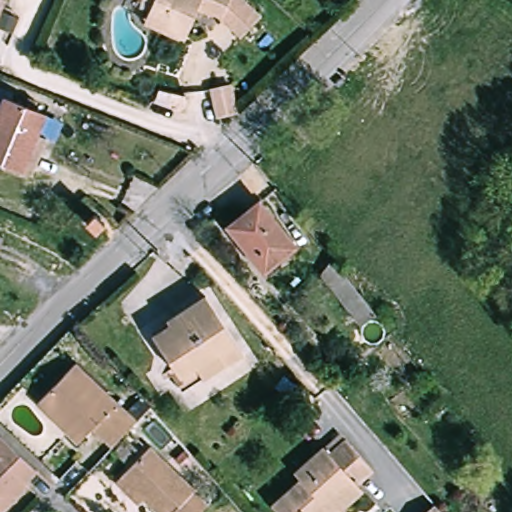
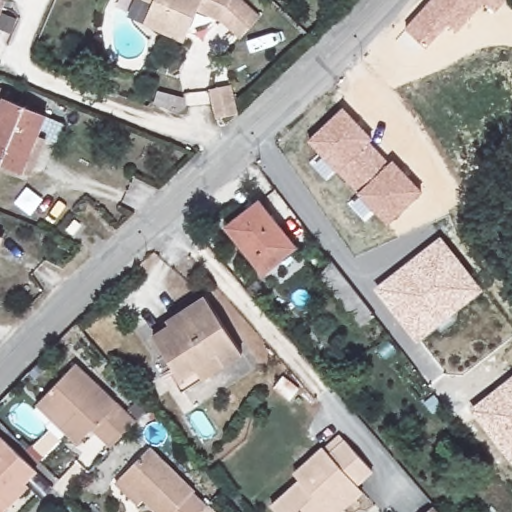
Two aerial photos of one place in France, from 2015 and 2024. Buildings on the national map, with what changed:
unchanged [(0,0),(3,0),(0,8),(0,0)]
unchanged [(220,21),(196,10),(182,41),(143,24),(153,3),(147,0),(240,0),(259,17),(239,38),(220,21)]
new [(483,1),(457,31),(448,23),(427,47),(406,29),(431,0),(505,0),(496,12),(483,1)]
new [(228,90),(234,117),(212,121),(207,94),(228,90)]
unchanged [(30,175),(21,172),(0,163),(0,104),(0,97),(2,98),(44,115),(36,135),(45,138),(30,175)]
new [(337,172),(307,141),(343,106),(373,138),(370,141),(390,163),(393,160),(422,192),(388,225),(358,194),(337,172)]
unchanged [(295,246),(263,272),(227,226),(258,201),(295,246)]
unchanged [(0,256),(0,234),(7,236),(0,256)]
new [(374,290),(440,236),(484,290),(417,343),(374,290)]
unchanged [(339,271),(374,316),(360,327),(317,272),(332,261),(339,271)]
unchanged [(173,370),(177,366),(152,327),(170,315),(167,311),(205,286),(241,343),(223,355),(181,382),(173,370)]
unchanged [(135,422),(123,434),(112,446),(92,428),(78,443),(37,403),(75,364),(135,422)]
new [(471,409),(512,376),(512,462),(471,409)]
unchanged [(333,512),(332,512),(327,505),(319,512),(279,512),(270,502),(299,476),(293,470),(322,443),(323,443),(338,429),(372,465),(355,479),(362,486),(333,512)]
unchanged [(0,507),(0,431),(35,466),(23,478),(17,472),(7,481),(17,490),(0,507)]
unchanged [(200,512),(156,512),(143,500),(138,505),(115,482),(120,477),(148,447),(207,505),(200,512)]
unchanged [(428,506),(434,512),(422,512),(428,506)]

